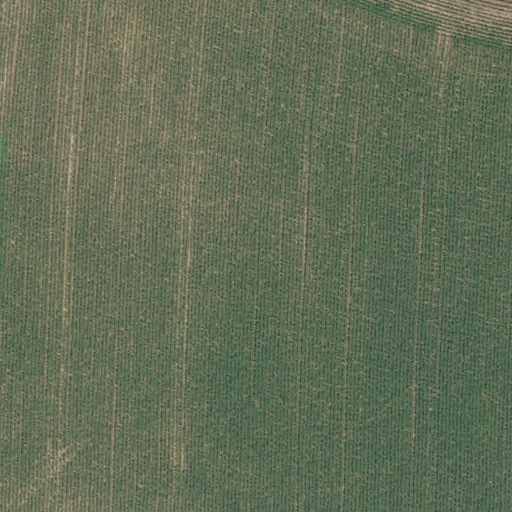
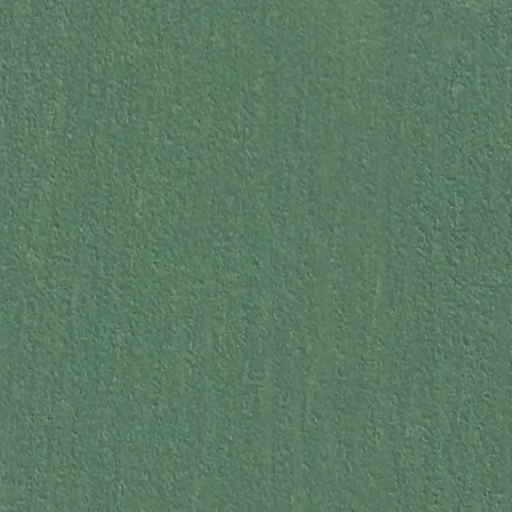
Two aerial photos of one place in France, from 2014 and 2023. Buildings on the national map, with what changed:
[]

